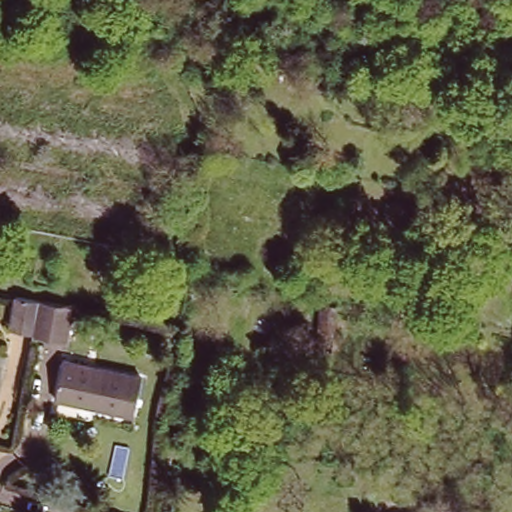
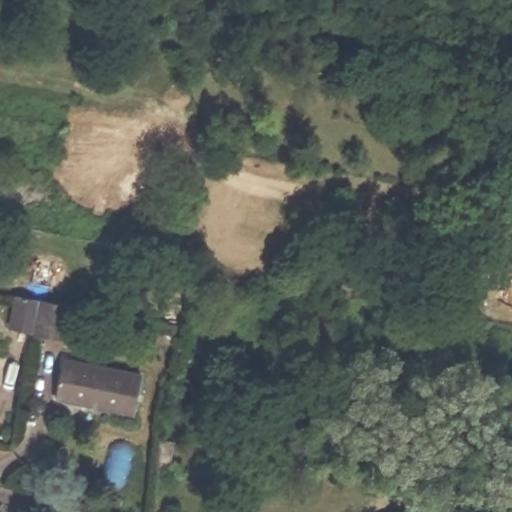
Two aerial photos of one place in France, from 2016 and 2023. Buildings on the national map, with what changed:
unchanged [(36,335),(36,331),(15,327),(20,296),(42,300),(59,303),(75,306),(70,342),(52,339),(36,335)]
unchanged [(146,372),(138,412),(60,397),(68,356),(146,372)]
unchanged [(162,453),(172,455),(170,471),(160,469),(162,453)]

